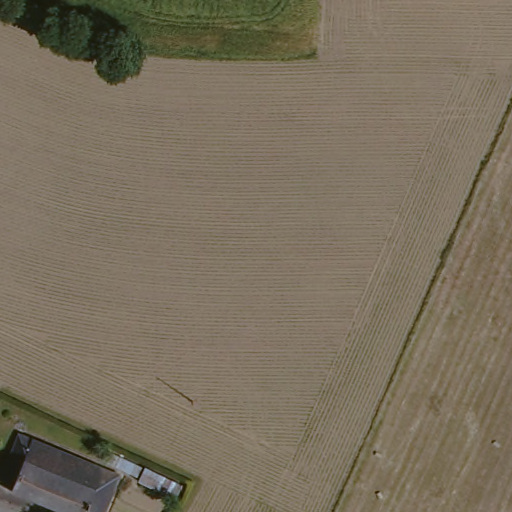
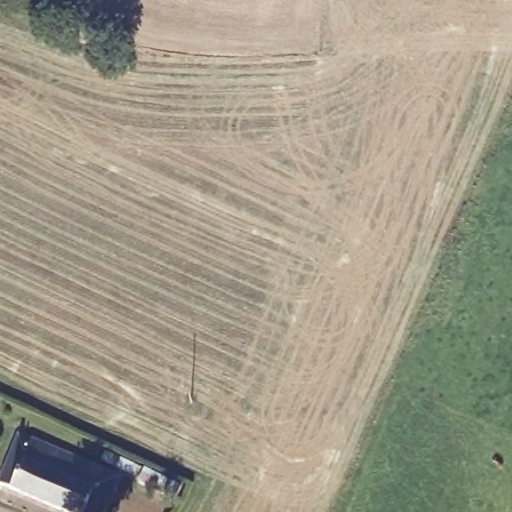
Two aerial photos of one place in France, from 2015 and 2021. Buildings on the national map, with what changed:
unchanged [(0,484),(0,479),(17,433),(101,470),(82,512),(71,512),(0,484)]
unchanged [(118,476),(105,512),(82,512),(101,470),(118,476)]

